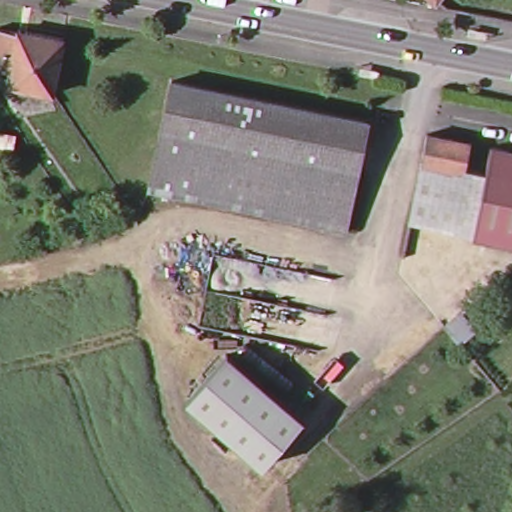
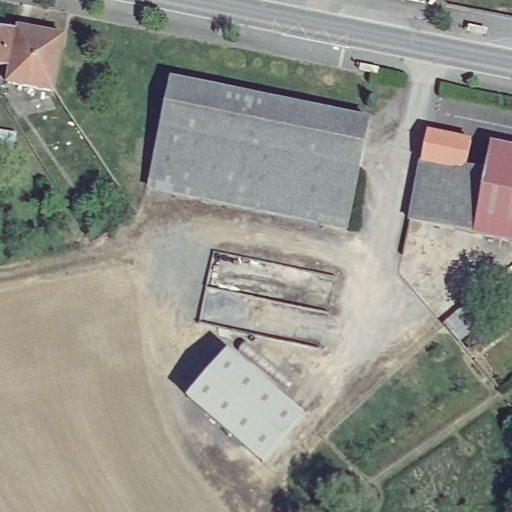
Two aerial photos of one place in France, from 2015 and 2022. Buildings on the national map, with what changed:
unchanged [(469,16),(486,20),(484,30),(467,27),(469,16)]
unchanged [(5,68),(0,67),(0,28),(11,30),(11,27),(59,35),(49,90),(3,82),(5,68)]
unchanged [(364,61),(382,65),(381,73),(362,70),(364,61)]
unchanged [(172,78),(369,119),(347,227),(150,185),(172,78)]
unchanged [(428,131),(472,140),(467,166),(466,171),(422,161),(428,131)]
unchanged [(466,171),(467,166),(486,171),(491,144),(512,148),(512,239),(454,228),(466,171)]
unchanged [(466,171),(454,228),(410,219),(422,161),(466,171)]
unchanged [(464,309),(479,326),(462,342),(451,330),(447,325),(464,309)]
unchanged [(258,468),(180,400),(228,345),(305,416),(276,447),(258,468)]

